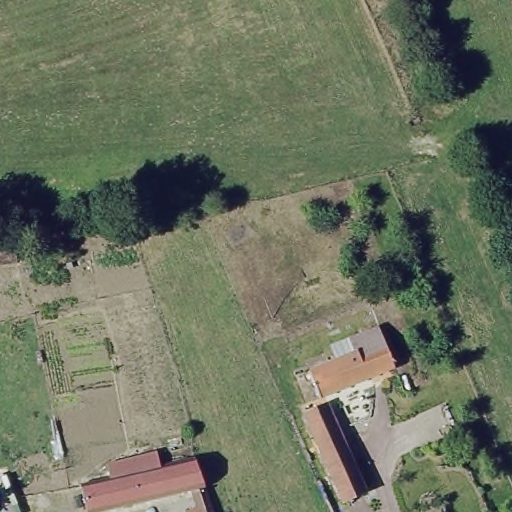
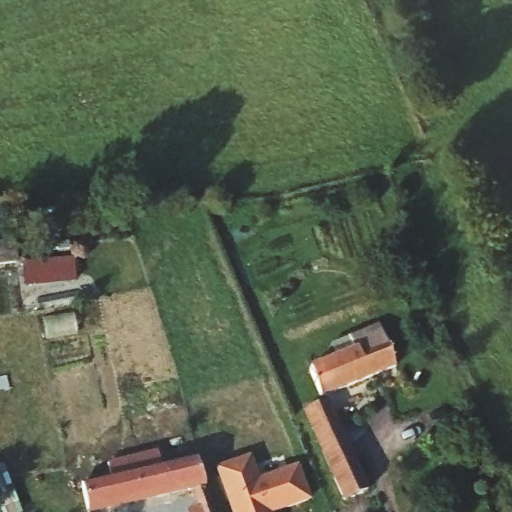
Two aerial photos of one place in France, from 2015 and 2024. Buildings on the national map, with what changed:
unchanged [(17,241),(23,272),(0,274),(0,243),(17,241)]
unchanged [(356,355),(351,341),(378,330),(383,345),(393,371),(318,399),(309,373),(317,370),(356,355)]
unchanged [(334,402),(349,447),(363,496),(354,499),(339,504),(308,410),(334,402)]
new [(250,455),(258,479),(297,465),(310,502),(281,512),(229,512),(214,468),(250,455)]
unchanged [(199,459),(216,512),(199,512),(193,491),(97,512),(88,512),(82,485),(199,459)]

